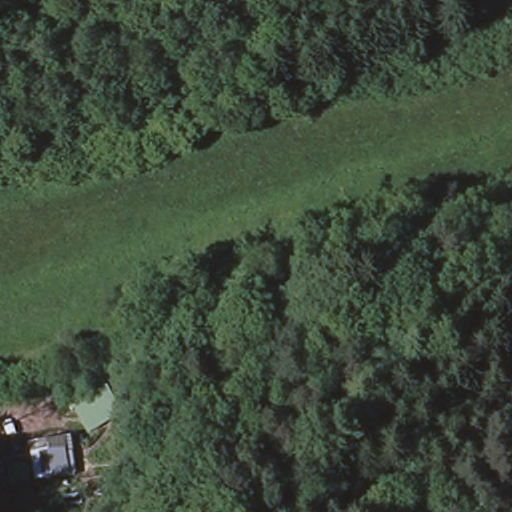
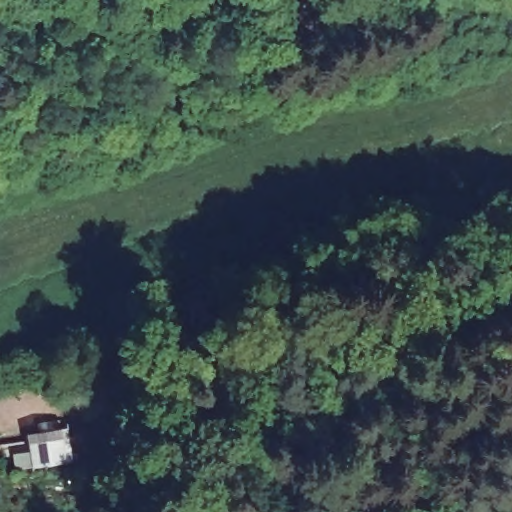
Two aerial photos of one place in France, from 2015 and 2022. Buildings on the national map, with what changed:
unchanged [(61,434),(65,456),(35,460),(31,439),(61,434)]

